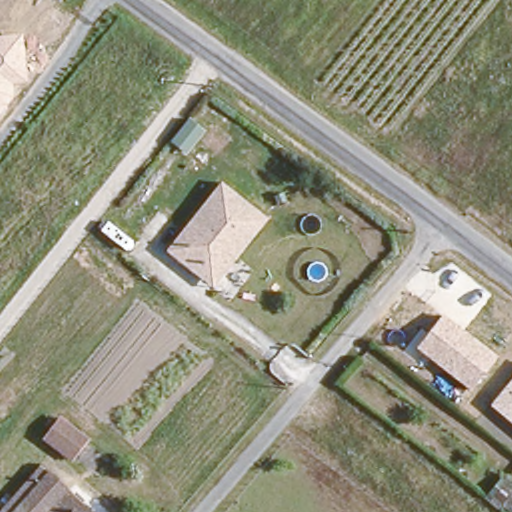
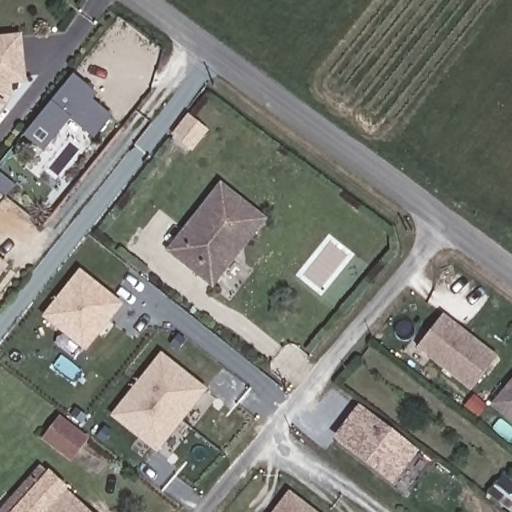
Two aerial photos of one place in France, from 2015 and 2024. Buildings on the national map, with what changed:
unchanged [(25,83),(10,85),(12,99),(0,114),(0,36),(20,34),(25,83)]
new [(72,74),(97,94),(92,100),(112,117),(94,140),(70,120),(43,152),(23,135),(72,74)]
unchanged [(196,273),(179,261),(168,253),(184,230),(219,182),(264,215),(243,244),(238,244),(233,251),(239,256),(224,277),(216,288),(196,273)]
new [(0,276),(0,259),(8,266),(0,276)]
new [(85,352),(41,317),(79,270),(122,305),(85,352)]
unchanged [(468,392),(416,351),(443,315),(497,355),(468,392)]
new [(157,451),(114,417),(161,357),(205,391),(157,451)]
unchanged [(512,377),(512,423),(490,405),(512,377)]
new [(393,484),(331,437),(358,403),(418,451),(393,484)]
unchanged [(69,460),(32,440),(59,410),(86,432),(69,460)]
unchanged [(37,462),(42,466),(90,512),(0,512),(0,503),(10,492),(37,462)]
unchanged [(505,476),(512,481),(512,512),(505,512),(488,499),(505,476)]
new [(317,512),(272,512),(289,490),(317,512)]

